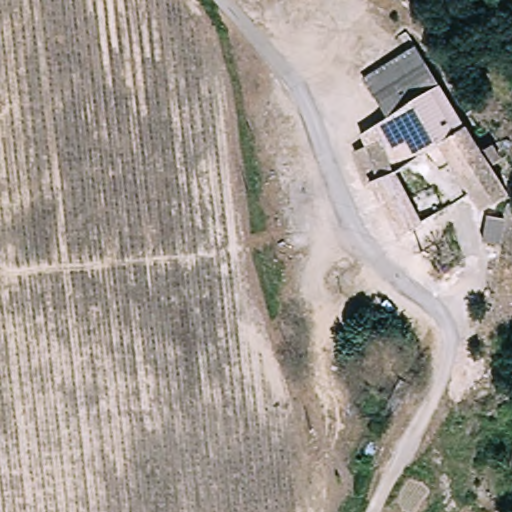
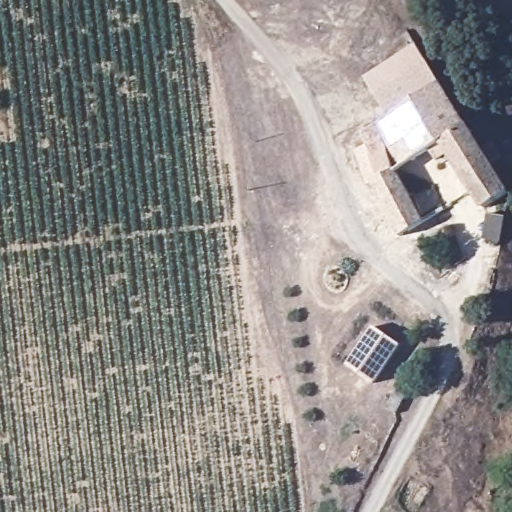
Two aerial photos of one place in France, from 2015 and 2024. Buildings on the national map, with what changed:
unchanged [(494,209),(459,151),(446,159),(440,149),(406,170),(433,219),(409,233),(380,179),(375,180),(363,146),(374,142),(370,130),(397,113),(373,74),(424,42),(490,147),(501,140),(507,148),(512,157),(512,158),(504,163),(501,165),(512,183),(512,198),(494,209)]
unchanged [(493,240),(498,215),(512,218),(512,228),(509,244),(493,240)]
new [(374,383),(348,364),(374,327),(401,346),(374,383)]
unchanged [(401,398),(390,391),(400,374),(411,381),(401,398)]

